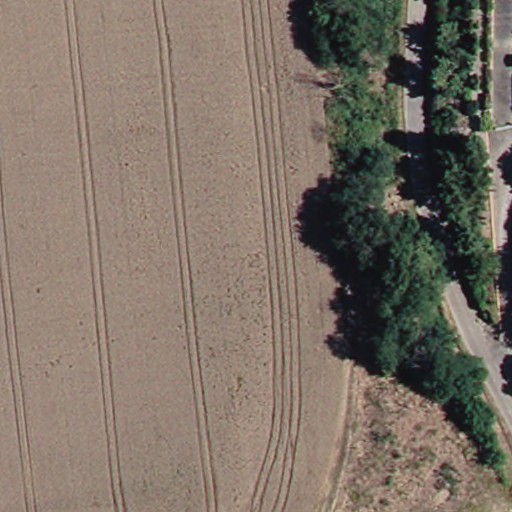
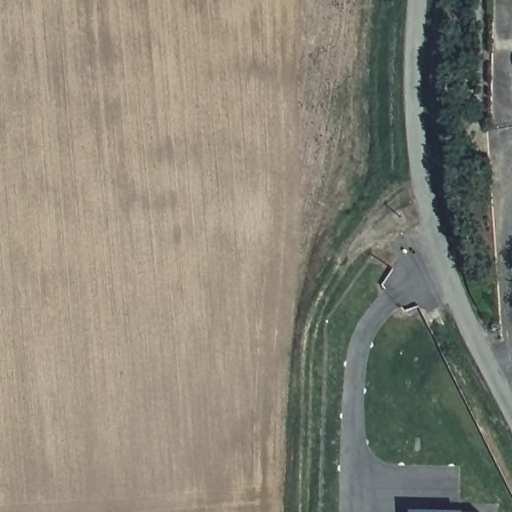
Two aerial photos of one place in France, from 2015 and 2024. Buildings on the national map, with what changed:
new [(408,511),(478,511),(478,512),(408,512),(408,511)]

